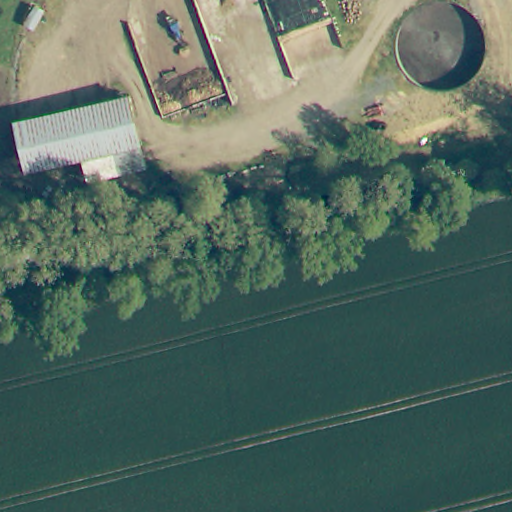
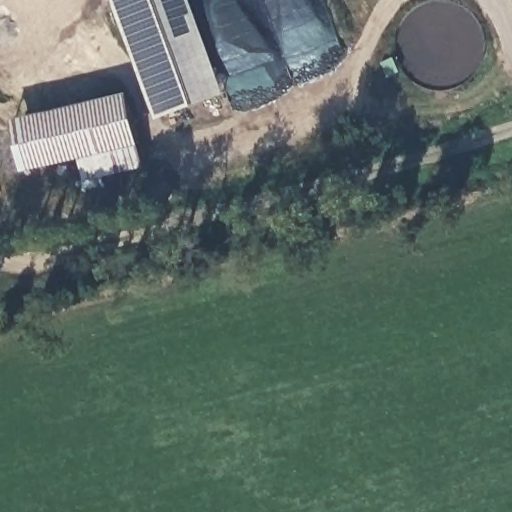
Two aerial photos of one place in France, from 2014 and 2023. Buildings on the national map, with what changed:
new [(229,94),(161,118),(116,0),(195,0),(214,50),(229,94)]
unchanged [(80,157),(25,171),(12,122),(126,94),(138,142),(80,157)]
unchanged [(143,165),(85,180),(80,157),(138,142),(143,165)]

